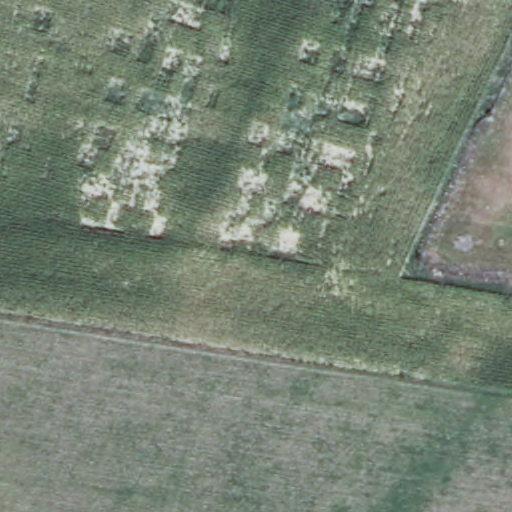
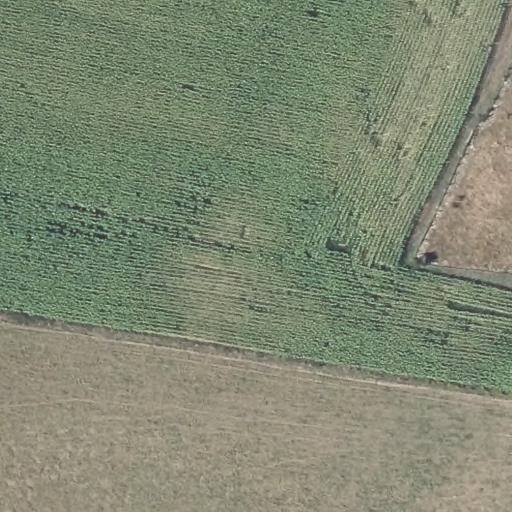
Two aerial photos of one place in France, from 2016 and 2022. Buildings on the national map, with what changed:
[]

